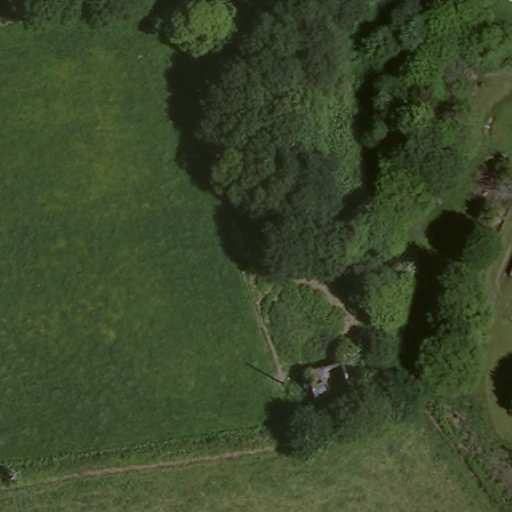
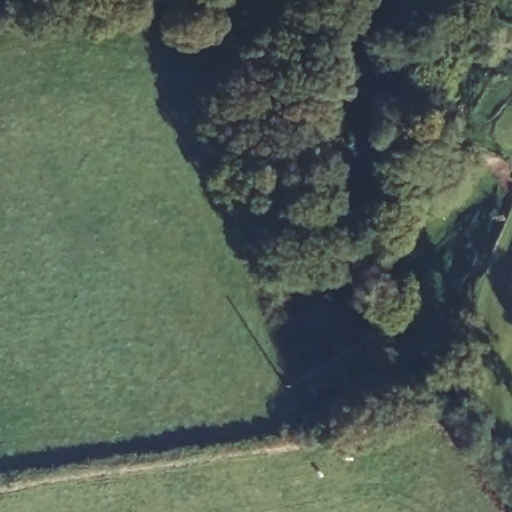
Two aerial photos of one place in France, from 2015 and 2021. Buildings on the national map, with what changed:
unchanged [(328,370),(328,368),(348,362),(358,390),(307,407),(297,381),(328,370)]

